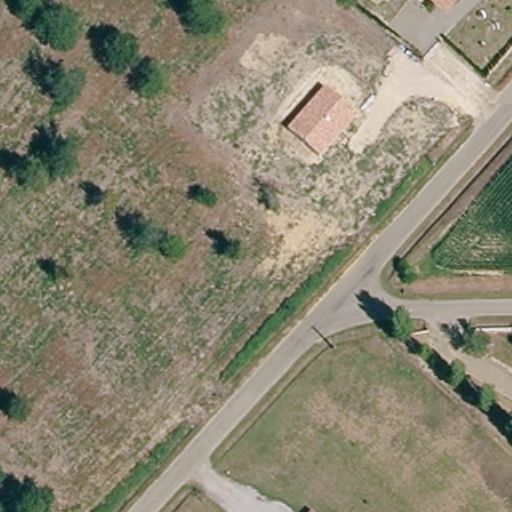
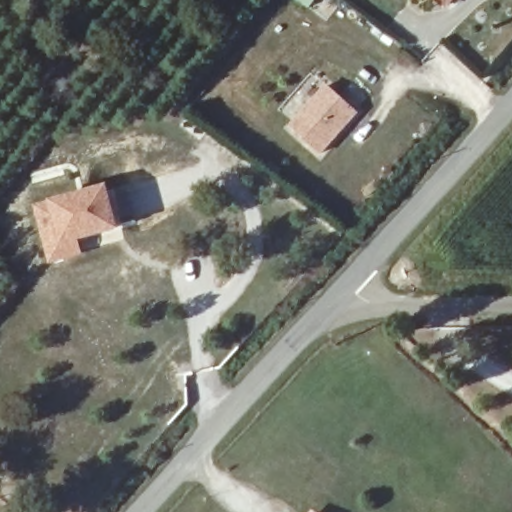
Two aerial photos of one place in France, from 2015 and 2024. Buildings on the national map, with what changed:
unchanged [(448,4),(444,0),(452,0),(448,4)]
unchanged [(326,84),(358,112),(319,153),(288,127),(326,84)]
new [(108,184),(119,231),(79,242),(83,255),(49,264),(32,204),(108,184)]

